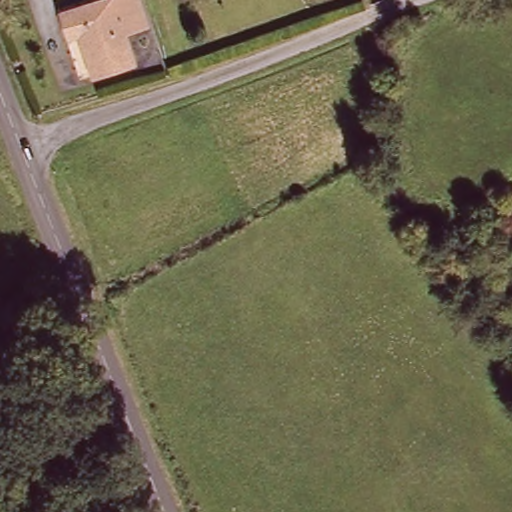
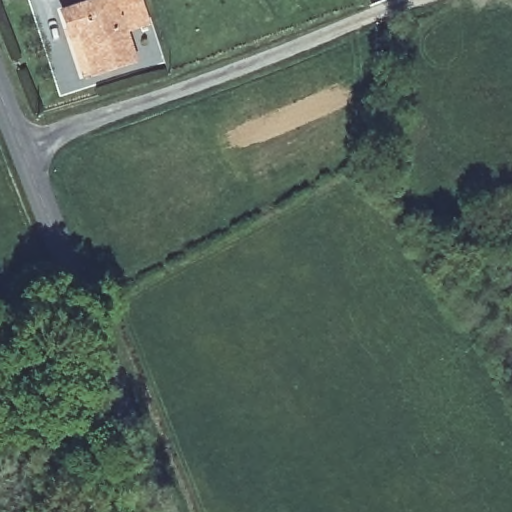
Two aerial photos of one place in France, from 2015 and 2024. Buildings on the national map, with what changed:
unchanged [(90,69),(78,27),(65,30),(57,5),(72,0),(111,0),(120,30),(128,58),(90,69)]
unchanged [(148,22),(120,30),(111,0),(142,0),(148,22)]

